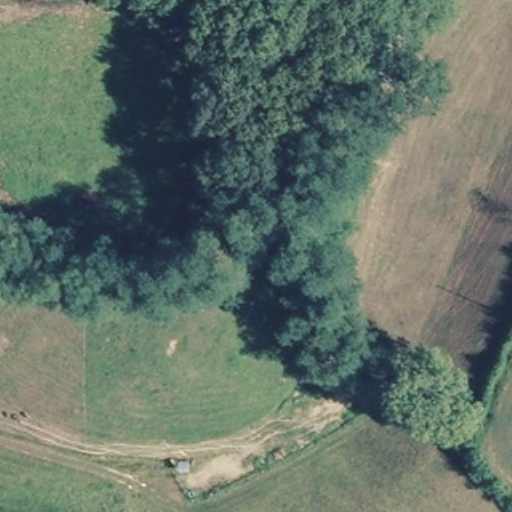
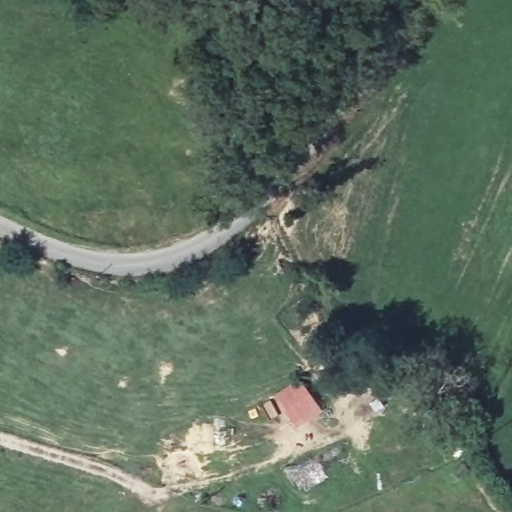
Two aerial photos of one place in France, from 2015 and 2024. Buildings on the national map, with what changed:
new [(298,378),(322,412),(295,429),(273,395),(298,378)]

